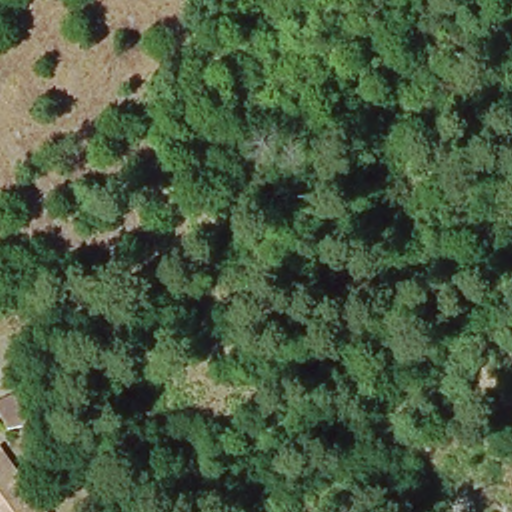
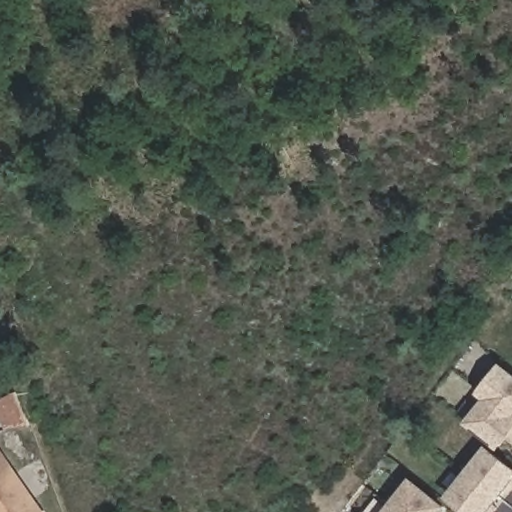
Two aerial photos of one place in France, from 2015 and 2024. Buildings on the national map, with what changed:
new [(479,390),(499,365),(512,375),(512,416),(479,390)]
unchanged [(0,413),(0,400),(13,395),(25,423),(26,425),(6,429),(0,413)]
new [(497,444),(468,420),(487,397),(512,416),(512,426),(497,444)]
new [(511,437),(512,436),(512,437),(511,437)]
new [(509,480),(497,495),(467,472),(486,448),(512,467),(512,482),(509,480)]
unchanged [(0,450),(44,512),(0,512),(0,450)]
new [(448,496),(467,472),(497,495),(485,510),(488,512),(469,512),(448,496)]
new [(409,480),(441,505),(436,512),(399,512),(390,505),(409,480)]
new [(390,505),(399,512),(384,512),(390,505)]

